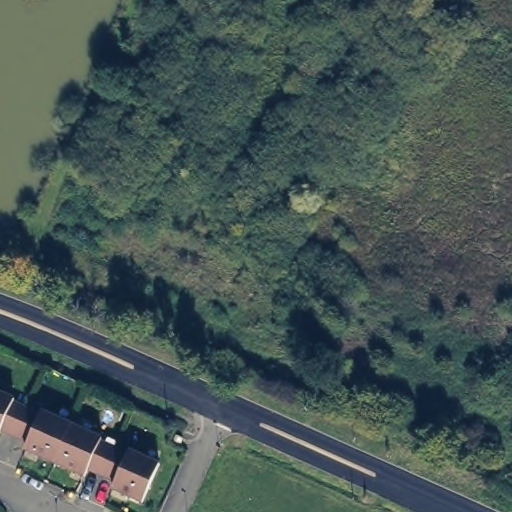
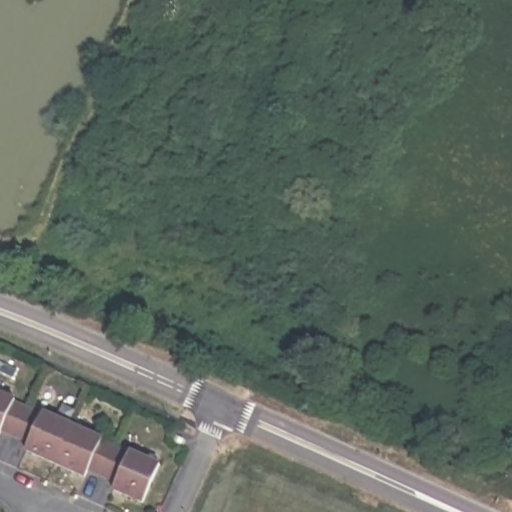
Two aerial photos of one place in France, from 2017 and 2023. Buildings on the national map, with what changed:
unchanged [(42,411),(101,438),(100,440),(128,452),(130,450),(159,464),(141,502),(112,489),(115,482),(87,469),(84,476),(25,450),(28,443),(0,430),(0,431),(0,392),(14,398),(13,401),(41,413),(42,411)]
unchanged [(181,435),(187,438),(185,444),(178,441),(181,435)]

